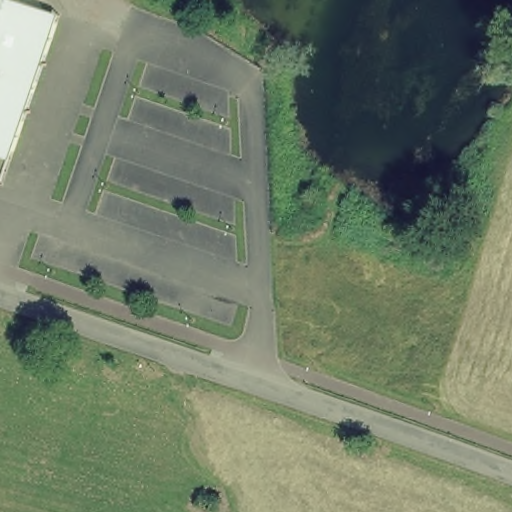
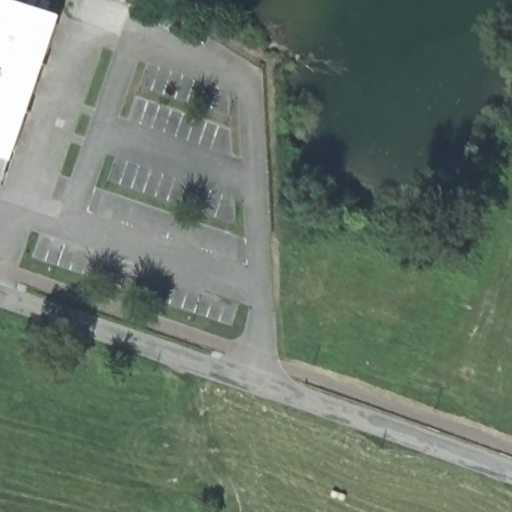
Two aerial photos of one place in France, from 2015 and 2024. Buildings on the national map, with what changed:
unchanged [(21,0),(62,16),(3,187),(0,186),(0,0),(21,0)]

